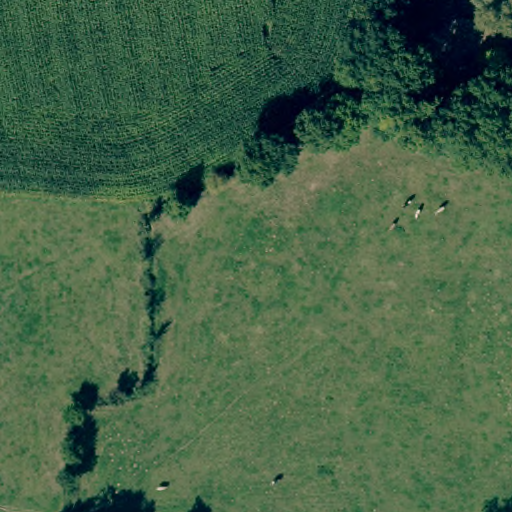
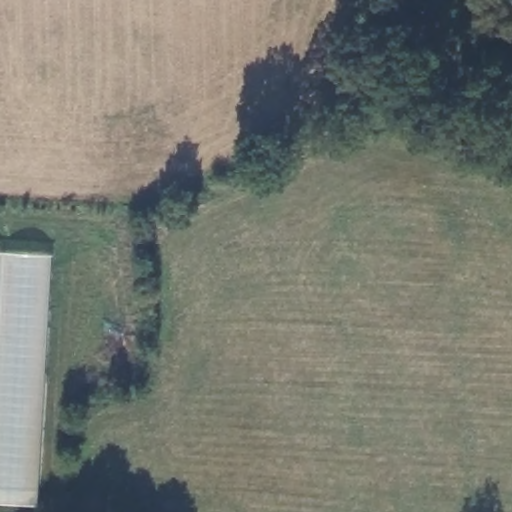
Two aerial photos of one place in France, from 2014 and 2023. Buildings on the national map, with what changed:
new [(0,505),(0,252),(49,254),(35,507),(0,505)]

